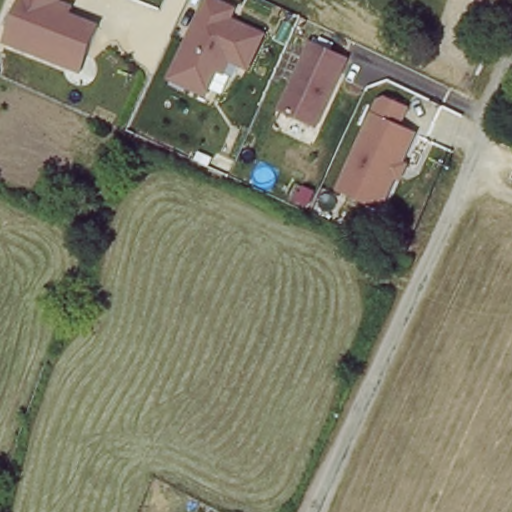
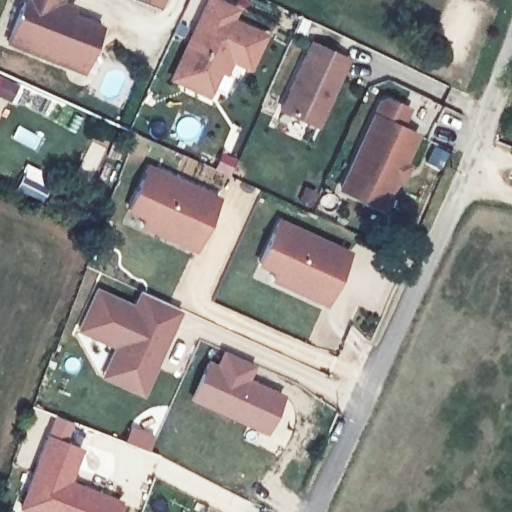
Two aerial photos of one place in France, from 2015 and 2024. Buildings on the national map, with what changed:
unchanged [(65,0),(80,5),(76,15),(103,24),(86,71),(8,44),(23,0),(65,0)]
unchanged [(235,18),(269,34),(252,72),(233,65),(228,77),(221,75),(211,99),(170,80),(206,0),(226,0),(241,6),(235,18)]
unchanged [(352,58),(320,130),(280,111),(312,40),(352,58)]
unchanged [(379,98),(385,97),(411,108),(403,126),(420,134),(406,164),(411,166),(403,183),(398,181),(384,211),(338,191),(374,111),(379,98)]
new [(194,252),(139,227),(142,218),(126,212),(147,164),(220,197),(194,252)]
new [(325,306),(270,281),(273,272),(256,265),(278,218),(350,250),(325,306)]
new [(142,395),(100,376),(113,346),(76,330),(95,287),(132,304),(138,291),(181,310),(142,395)]
new [(264,430),(194,398),(209,362),(217,366),(224,351),(252,364),(242,385),(248,387),(250,382),(280,395),(264,430)]
new [(115,512),(31,512),(20,507),(46,435),(82,448),(70,480),(121,500),(115,512)]

